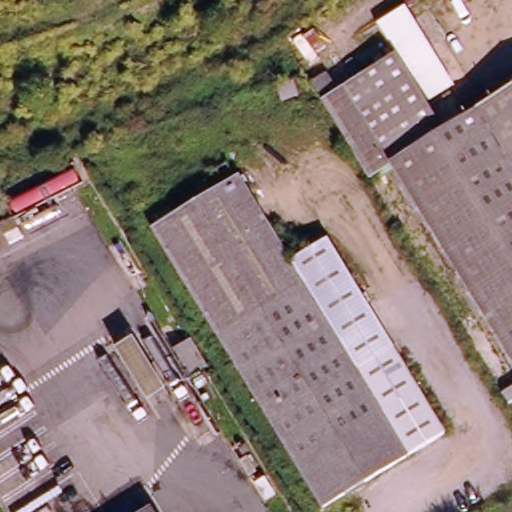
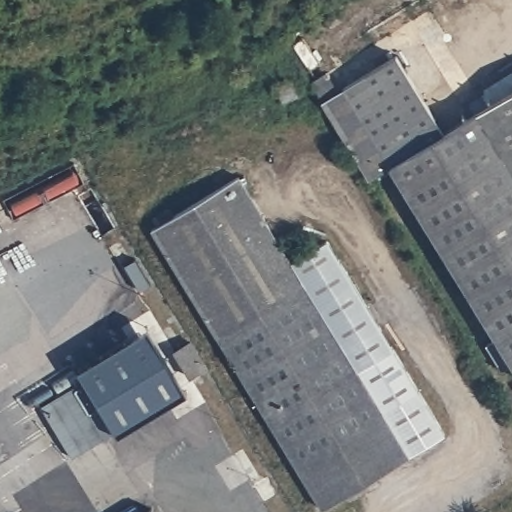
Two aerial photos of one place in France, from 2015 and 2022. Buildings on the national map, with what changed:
unchanged [(443,126),(512,84),(512,359),(388,160),(340,83),(394,50),(443,126)]
unchanged [(330,80),(315,88),(308,76),(307,74),(321,65),(325,71),(330,80)]
unchanged [(320,96),(340,83),(388,160),(368,172),(320,96)]
unchanged [(301,85),(305,98),(295,101),(290,89),(301,85)]
unchanged [(239,170),(294,260),(327,239),(450,433),(325,510),(147,227),(239,170)]
new [(149,327),(187,392),(120,432),(82,369),(149,327)]
unchanged [(192,343),(210,370),(194,380),(177,353),(192,343)]
new [(85,380),(115,432),(73,458),(42,405),(85,380)]

